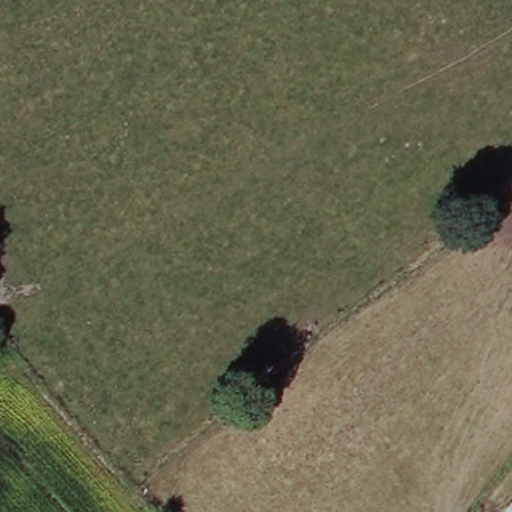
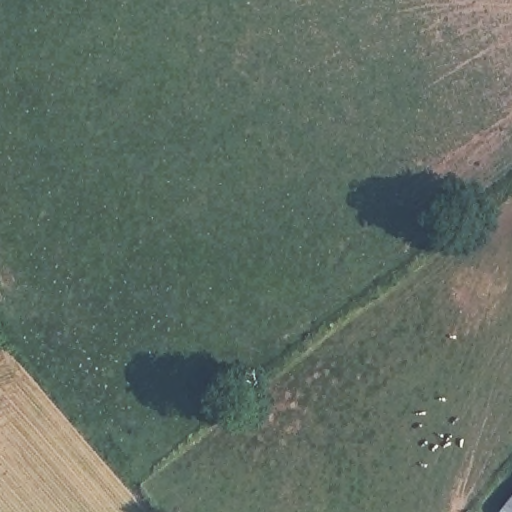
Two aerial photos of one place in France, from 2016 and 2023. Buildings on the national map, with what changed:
unchanged [(512,501),(512,512),(504,512),(503,511),(512,501)]

